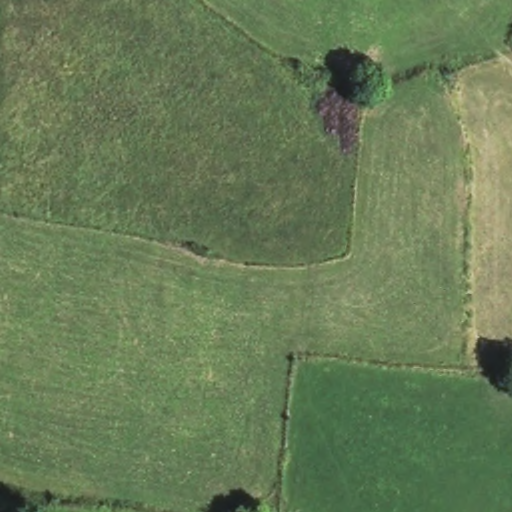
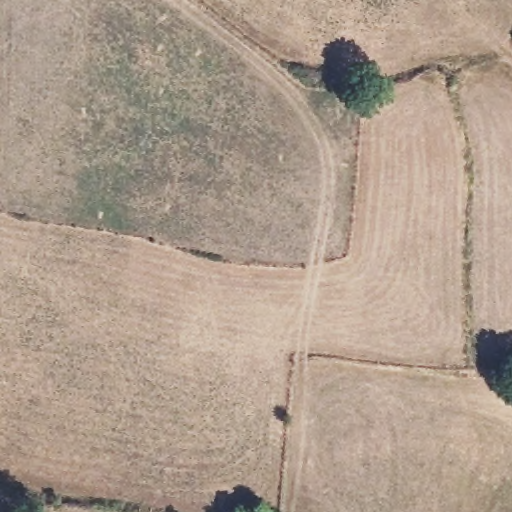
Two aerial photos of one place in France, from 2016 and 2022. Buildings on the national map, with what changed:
[]

